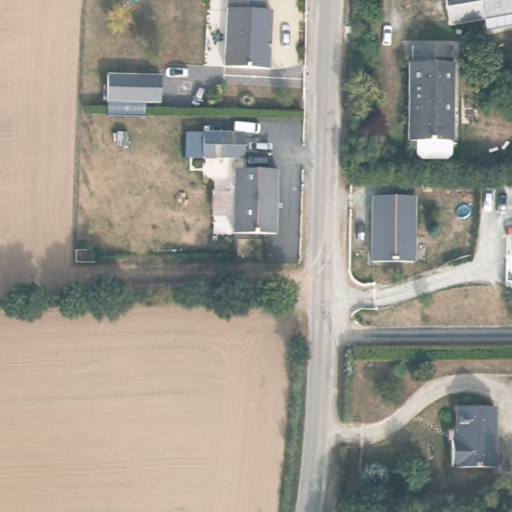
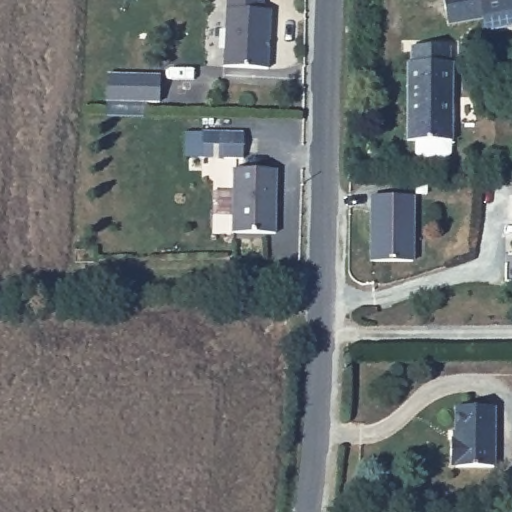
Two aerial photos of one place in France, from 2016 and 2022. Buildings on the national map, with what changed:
unchanged [(225,0),(244,0),(262,0),(261,15),(269,16),(265,74),(221,72),(225,0)]
unchanged [(475,12),(443,17),(441,0),(473,0),(475,12)]
unchanged [(475,12),(473,0),(512,0),(512,19),(476,25),(475,12)]
unchanged [(413,58),(413,44),(449,44),(449,60),(452,60),(452,138),(450,138),(451,150),(446,155),(418,155),(415,150),(416,137),(407,137),(408,58),(413,58)]
unchanged [(108,75),(161,77),(160,105),(107,102),(108,75)]
unchanged [(204,135),(243,135),(244,160),(203,160),(204,135)]
unchanged [(233,170),(275,171),(273,236),(230,234),(233,170)]
unchanged [(372,199),(414,199),(414,263),(371,262),(372,199)]
unchanged [(495,408),(494,467),(448,466),(449,438),(454,438),(454,406),(495,408)]

